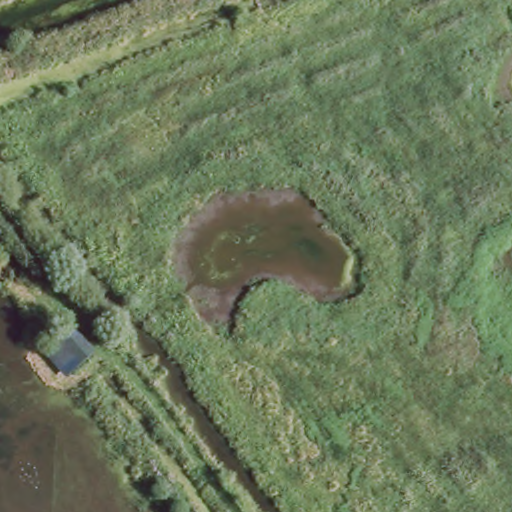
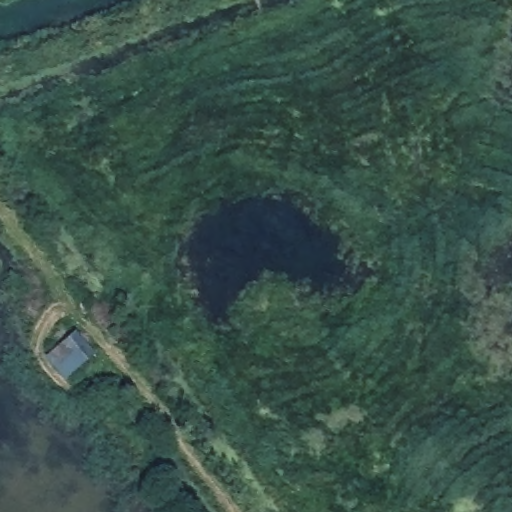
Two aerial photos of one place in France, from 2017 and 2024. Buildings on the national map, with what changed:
unchanged [(88,345),(64,365),(49,348),(74,328),(88,345)]

